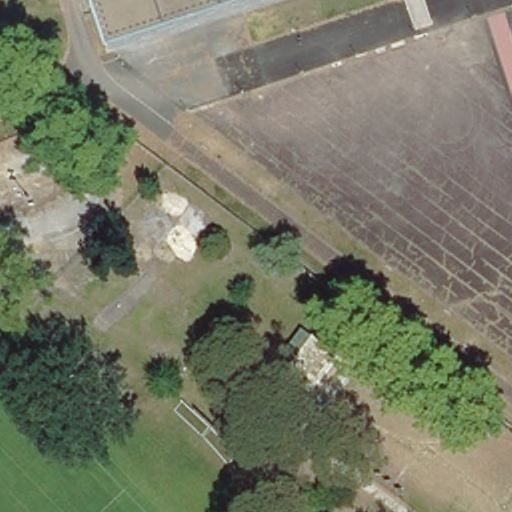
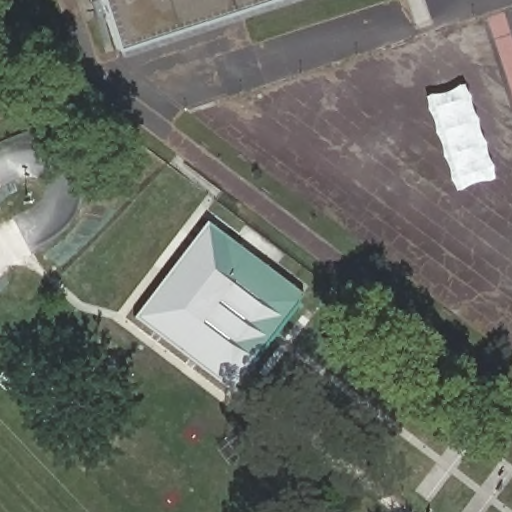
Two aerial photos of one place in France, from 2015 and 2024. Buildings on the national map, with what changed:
unchanged [(97,0),(255,0),(112,47),(97,0)]
new [(206,221),(233,242),(229,248),(286,292),(283,295),(233,361),(244,369),(227,391),(132,318),(206,221)]
new [(233,242),(301,294),(295,303),(296,305),(246,371),(244,369),(233,361),(283,295),(286,292),(229,248),(233,242)]
unchanged [(341,354),(313,394),(287,374),(297,360),(288,354),(306,328),(341,354)]

